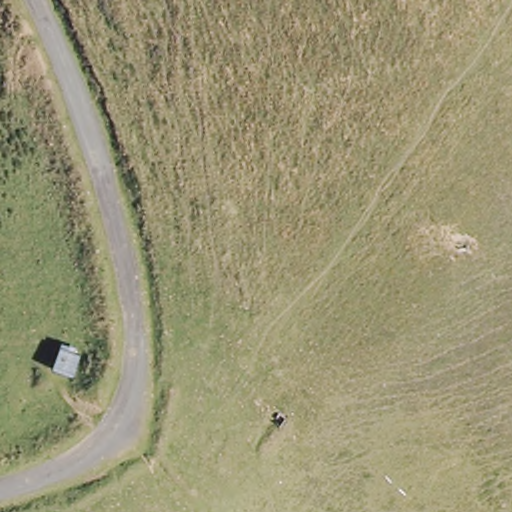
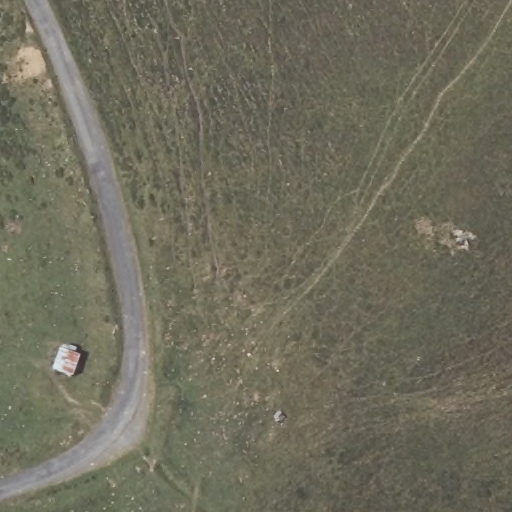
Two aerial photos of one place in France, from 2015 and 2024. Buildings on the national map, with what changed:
unchanged [(57,350),(81,354),(74,377),(53,372),(57,350)]

